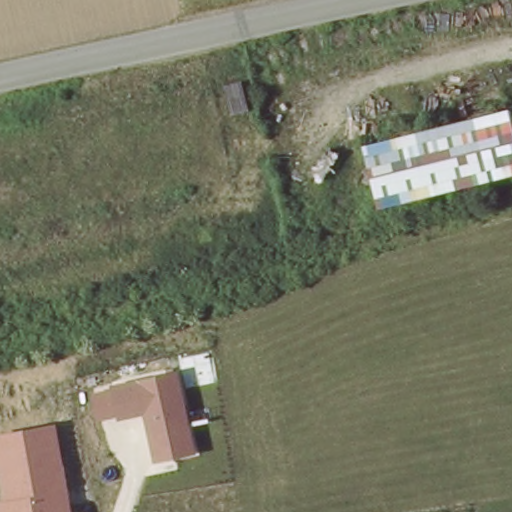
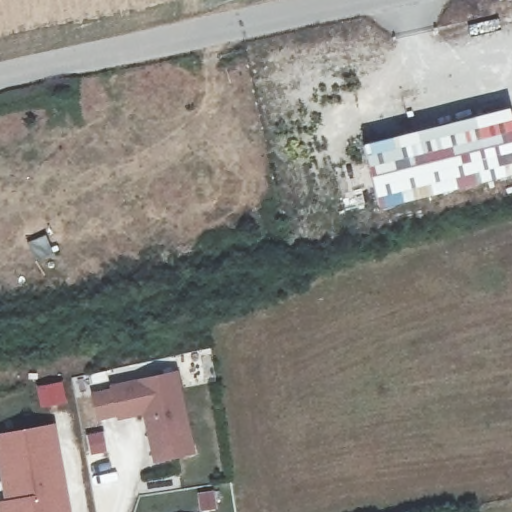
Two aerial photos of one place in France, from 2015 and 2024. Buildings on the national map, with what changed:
unchanged [(362,144),(510,108),(512,118),(512,171),(376,204),(362,144)]
unchanged [(153,464),(142,416),(116,422),(115,418),(94,422),(88,394),(110,390),(110,385),(178,371),(198,454),(153,464)]
unchanged [(0,481),(0,433),(55,423),(71,512),(0,512),(0,501),(3,501),(0,481)]

